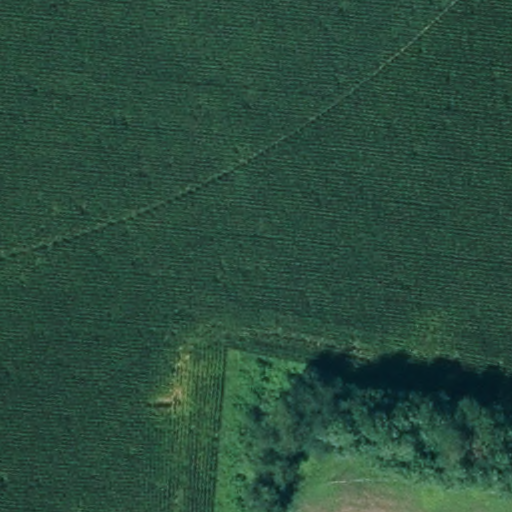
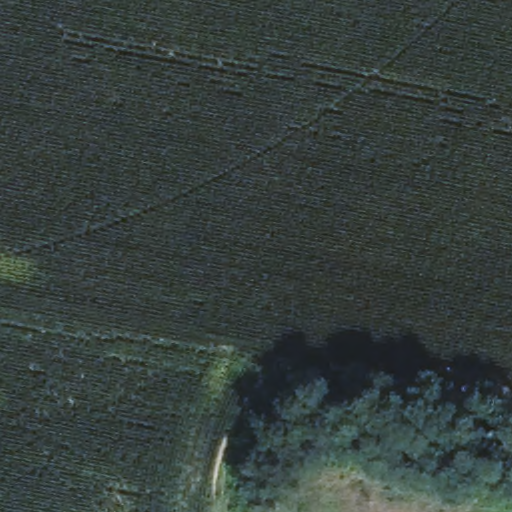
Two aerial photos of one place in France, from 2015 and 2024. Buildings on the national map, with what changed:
[]

